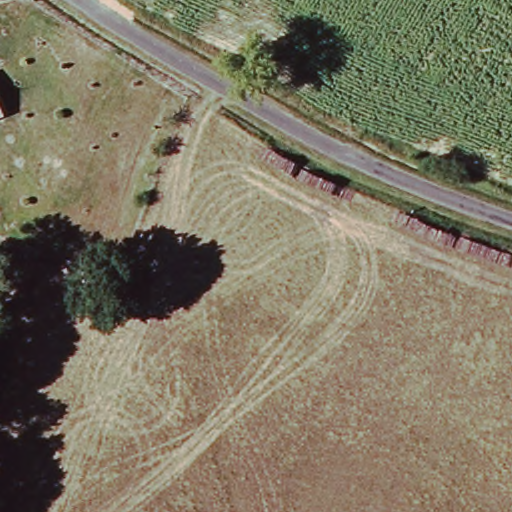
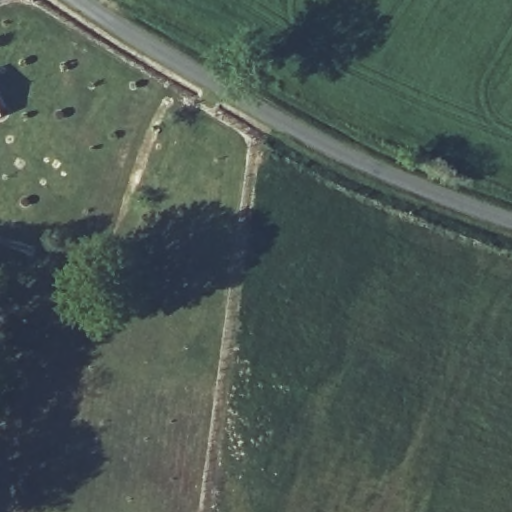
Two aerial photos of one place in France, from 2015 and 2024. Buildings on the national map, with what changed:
unchanged [(2,114),(0,115),(0,108),(2,114)]

